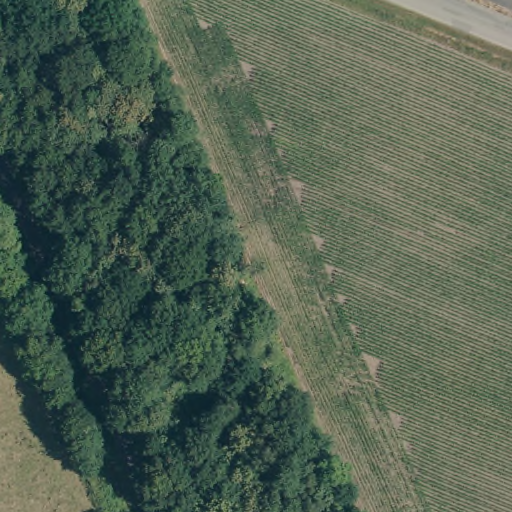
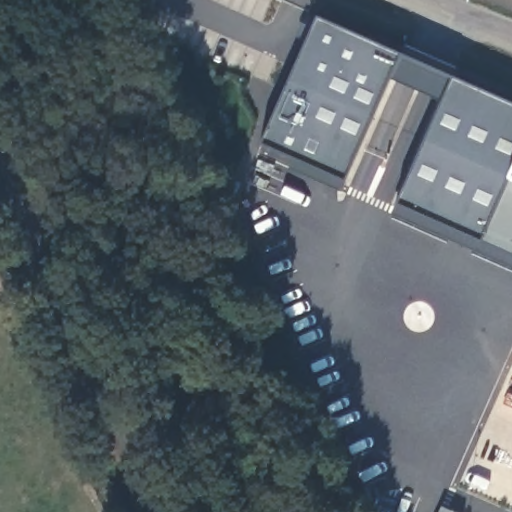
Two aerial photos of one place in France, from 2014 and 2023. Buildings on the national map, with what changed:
new [(396,207),(442,105),(390,82),(344,183),(339,192),(288,170),(294,160),(261,146),(317,21),(402,57),(406,47),(455,69),(451,79),(512,106),(512,269),(389,214),(396,207)]

